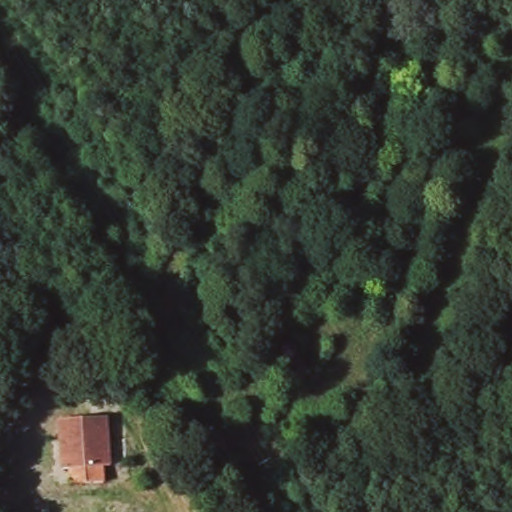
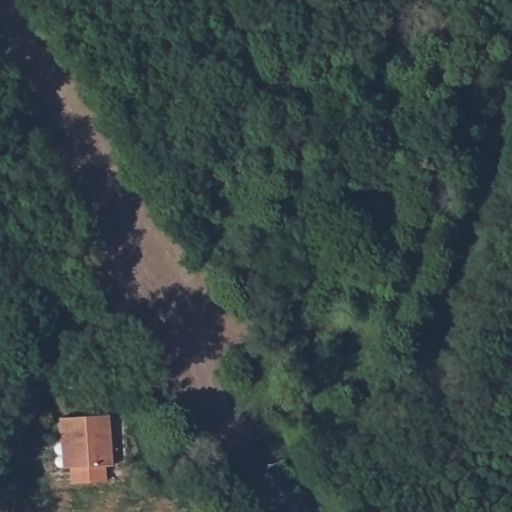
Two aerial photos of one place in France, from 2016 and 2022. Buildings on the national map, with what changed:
unchanged [(65,438),(64,419),(111,417),(115,466),(107,466),(108,482),(76,483),(75,469),(67,470),(65,438)]

